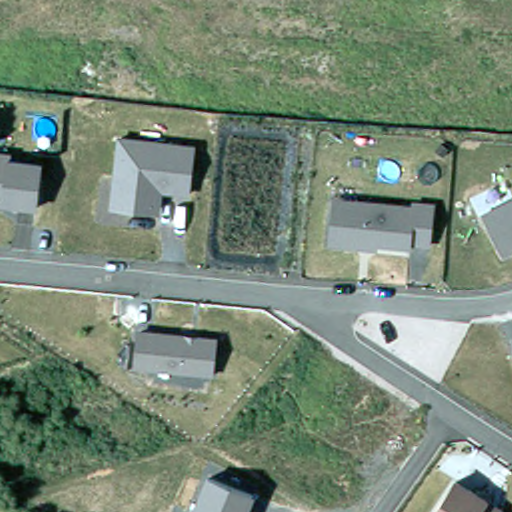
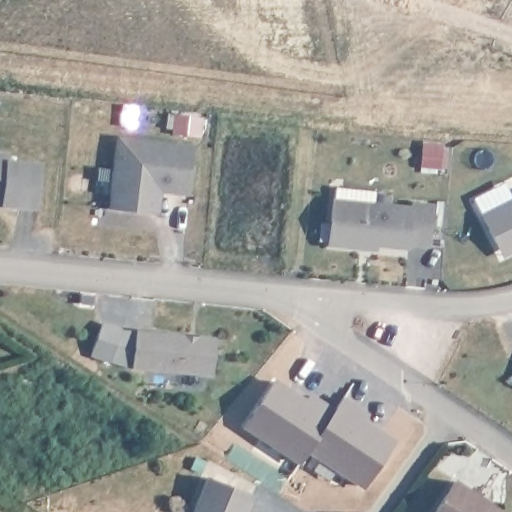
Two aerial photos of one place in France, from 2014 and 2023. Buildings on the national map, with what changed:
unchanged [(196,144),(191,196),(163,193),(161,214),(110,209),(118,135),(196,144)]
unchanged [(16,153),(15,160),(41,162),(38,210),(0,207),(0,152),(16,153)]
unchanged [(500,258),(481,211),(512,196),(512,251),(500,258)]
unchanged [(434,200),(430,249),(327,249),(331,197),(434,200)]
new [(101,323),(120,330),(110,358),(91,351),(101,323)]
unchanged [(220,335),(215,376),(132,370),(137,329),(220,335)]
new [(310,405),(314,398),(321,403),(337,413),(312,452),(304,464),(248,427),(277,383),(310,405)]
new [(345,401),(362,412),(370,417),(366,423),(397,444),(368,488),(312,452),(337,413),(345,401)]
unchanged [(249,512),(187,512),(190,505),(196,507),(208,476),(256,494),(249,512)]
unchanged [(503,512),(433,512),(455,480),(506,507),(503,512)]

